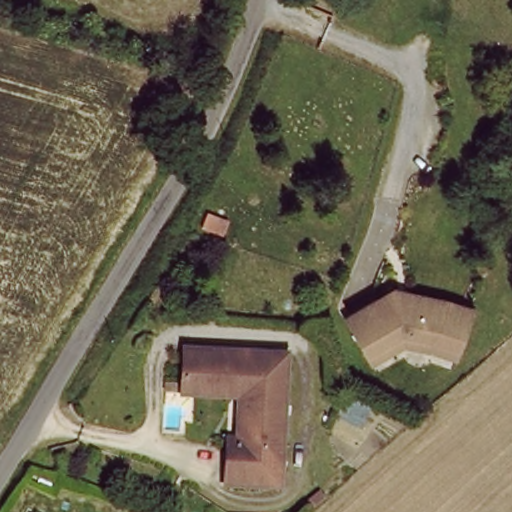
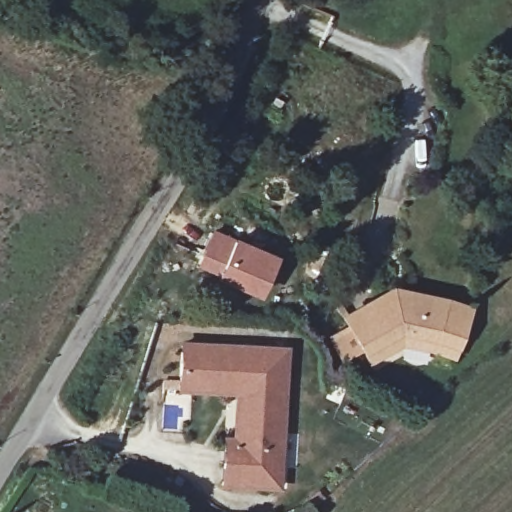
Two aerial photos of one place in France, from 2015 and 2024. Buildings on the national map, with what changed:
new [(212,230),(277,257),(257,300),(213,280),(214,277),(195,269),(212,230)]
unchanged [(331,322),(388,294),(484,314),(468,386),(407,361),(368,380),(331,322)]
unchanged [(246,447),(251,404),(188,395),(189,387),(195,349),(293,361),(277,499),(218,490),(222,453),(223,443),(246,447)]

